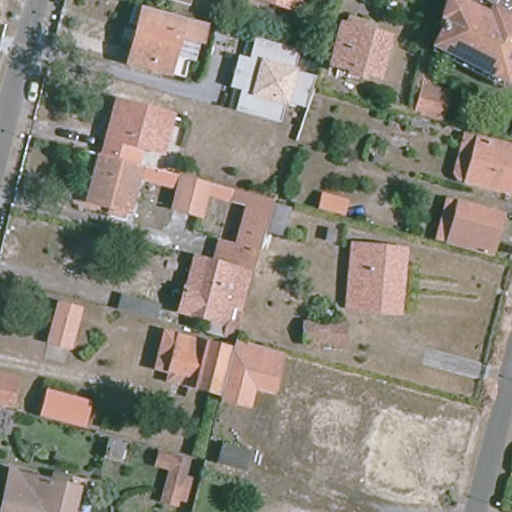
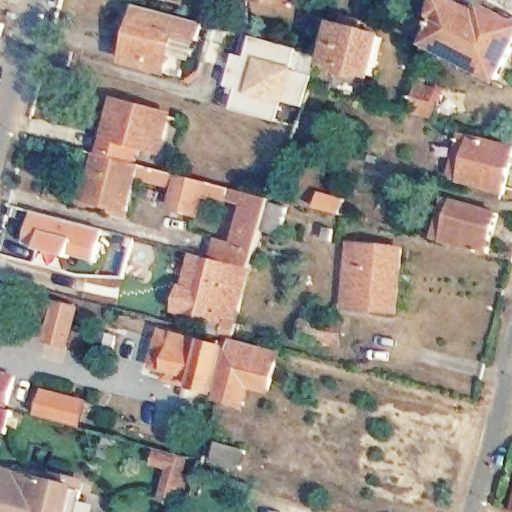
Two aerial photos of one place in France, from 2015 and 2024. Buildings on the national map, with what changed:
unchanged [(190,1),(185,0),(191,0),(190,1)]
unchanged [(296,12),(255,0),(300,0),(296,12)]
unchanged [(431,44),(435,37),(445,17),(440,14),(445,0),(512,0),(512,79),(505,75),(501,82),(431,44)]
unchanged [(201,24),(196,42),(176,36),(170,58),(186,62),(182,77),(126,62),(136,25),(127,23),(132,4),(149,9),(192,21),(201,24)]
unchanged [(342,28),(345,18),(363,23),(360,32),(385,39),(374,78),(359,74),(357,78),(343,75),(344,70),(326,65),(337,26),(342,28)]
unchanged [(229,31),(225,45),(210,41),(214,27),(229,31)]
unchanged [(235,55),(246,58),(252,38),(297,51),(292,70),(312,76),(310,84),(308,92),(307,92),(287,86),(231,71),(235,55)]
unchanged [(283,102),(278,123),(232,111),(238,90),(227,87),(231,71),(287,86),(307,92),(308,92),(303,108),(283,102)]
unchanged [(450,97),(443,122),(419,115),(426,90),(450,97)]
unchanged [(165,148),(145,142),(141,156),(105,146),(119,104),(121,96),(139,101),(176,111),(165,148)]
unchanged [(431,126),(428,135),(413,131),(415,122),(431,126)]
unchanged [(451,178),(462,136),(510,148),(512,149),(512,173),(506,193),(451,178)]
unchanged [(275,196),(257,265),(217,255),(222,236),(239,240),(250,200),(209,188),(203,211),(175,202),(180,182),(143,172),(133,208),(90,195),(103,150),(275,196)]
unchanged [(348,195),(344,209),(321,201),(325,188),(348,195)]
unchanged [(501,215),(491,254),(445,240),(447,229),(435,225),(440,210),(451,214),(455,202),(501,215)]
new [(35,210),(107,231),(100,263),(60,255),(25,243),(35,210)]
unchanged [(412,246),(406,307),(356,303),(361,241),(412,246)]
unchanged [(237,335),(210,328),(213,314),(180,306),(187,282),(189,283),(198,252),(256,268),(246,304),(239,330),(237,335)]
unchanged [(120,304),(125,290),(163,300),(159,314),(120,304)]
unchanged [(83,304),(73,342),(52,336),(62,298),(83,304)]
unchanged [(357,319),(356,341),(298,338),(300,316),(357,319)]
unchanged [(172,366),(157,362),(167,326),(230,343),(218,388),(195,382),(170,375),(172,366)]
unchanged [(285,350),(275,386),(256,382),(251,402),(225,394),(240,337),(285,350)]
unchanged [(19,405),(0,400),(0,371),(26,377),(19,405)]
unchanged [(67,426),(69,420),(41,413),(47,391),(67,396),(65,402),(75,404),(76,399),(88,402),(80,429),(67,426)]
unchanged [(0,429),(0,405),(22,411),(17,433),(0,429)]
unchanged [(122,443),(119,459),(75,447),(80,431),(122,443)]
unchanged [(247,451),(243,470),(215,462),(220,444),(247,451)]
unchanged [(186,459),(182,476),(190,478),(185,493),(178,490),(175,503),(160,499),(168,469),(154,465),(158,452),(186,459)]
unchanged [(49,482),(51,474),(85,483),(84,490),(80,489),(75,512),(0,512),(0,507),(9,471),(49,482)]

